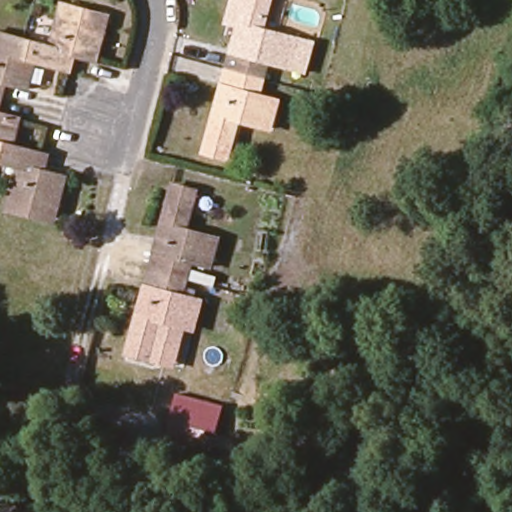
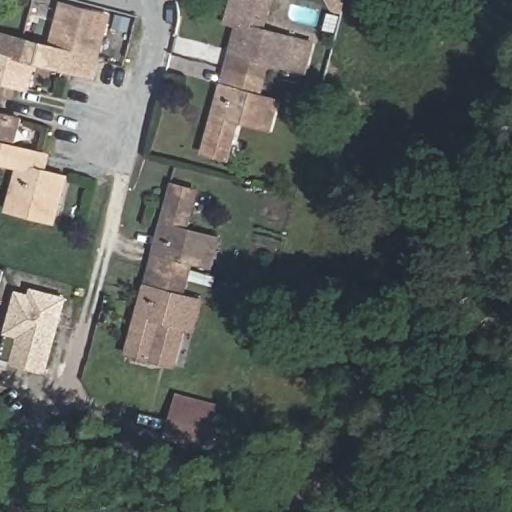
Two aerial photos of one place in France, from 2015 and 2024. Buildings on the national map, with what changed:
unchanged [(228,69),(234,48),(243,50),(244,40),(236,37),(246,0),(272,0),(265,29),(294,36),(287,65),(269,61),(265,77),(228,69)]
unchanged [(21,57),(24,44),(26,37),(49,42),(57,1),(96,10),(93,22),(103,24),(96,55),(64,50),(62,65),(33,60),(21,57)]
unchanged [(17,35),(26,37),(24,44),(21,57),(33,60),(26,90),(0,83),(0,86),(0,32),(17,35)]
unchanged [(261,94),(277,99),(270,128),(241,122),(233,160),(208,153),(222,95),(232,97),(233,87),(225,84),(228,69),(265,77),(261,94)]
unchanged [(7,142),(5,153),(3,165),(0,164),(0,114),(17,117),(13,142),(7,142)]
unchanged [(41,165),(71,172),(63,210),(53,207),(50,220),(15,212),(25,170),(3,165),(5,153),(7,142),(13,142),(45,150),(44,156),(41,165)]
unchanged [(146,276),(150,255),(160,253),(161,240),(154,239),(166,183),(190,189),(181,229),(213,236),(208,265),(189,263),(184,285),(146,276)]
unchanged [(142,297),(149,298),(151,288),(144,287),(146,276),(184,285),(182,294),(198,297),(190,330),(187,330),(158,322),(149,360),(129,355),(142,297)]
new [(50,373),(11,364),(18,338),(6,335),(18,290),(30,293),(32,287),(69,297),(50,373)]
unchanged [(158,322),(187,330),(177,366),(149,360),(158,322)]
unchanged [(214,443),(166,430),(176,393),(223,405),(214,443)]

